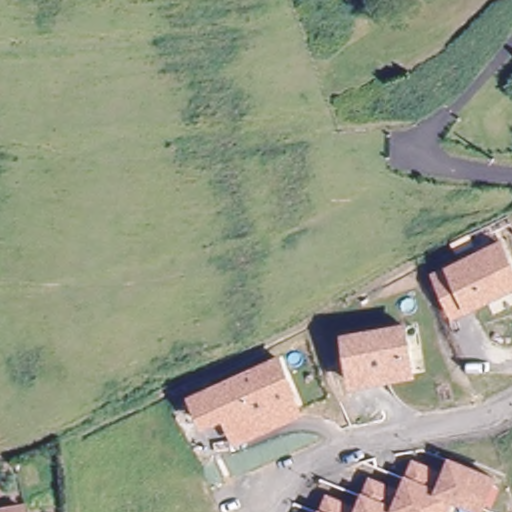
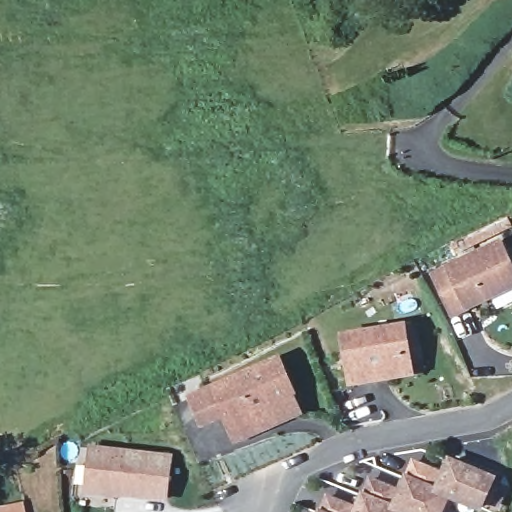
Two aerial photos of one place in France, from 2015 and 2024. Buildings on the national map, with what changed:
unchanged [(437,277),(501,247),(512,270),(512,290),(456,317),(437,277)]
unchanged [(392,376),(354,383),(346,338),(400,329),(405,328),(410,358),(405,358),(390,361),(392,376)]
unchanged [(274,420),(240,435),(234,421),(229,423),(226,417),(205,426),(194,399),(279,361),(294,394),(300,408),(274,420)]
new [(173,455),(167,502),(83,495),(89,446),(173,455)]
unchanged [(371,482),(403,494),(407,483),(415,465),(446,477),(450,466),(481,478),(491,482),(483,504),(480,512),(478,512),(448,500),(444,512),(323,512),(328,499),(360,511),(365,500),(371,482)]
unchanged [(14,512),(0,512),(0,500),(11,497),(14,512)]

